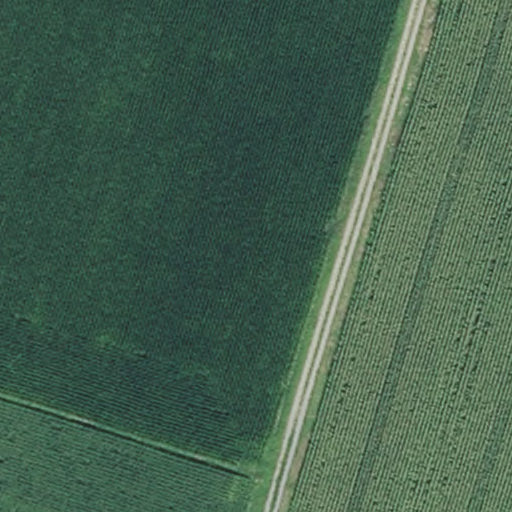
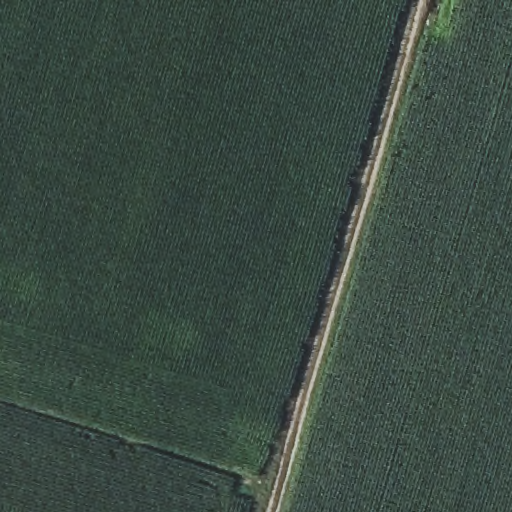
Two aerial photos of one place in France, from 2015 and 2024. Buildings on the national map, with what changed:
[]

